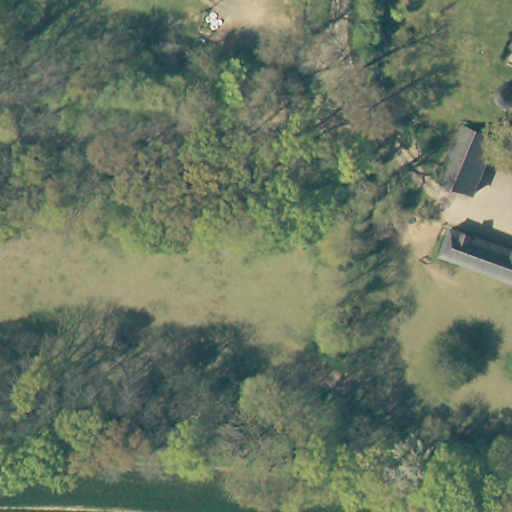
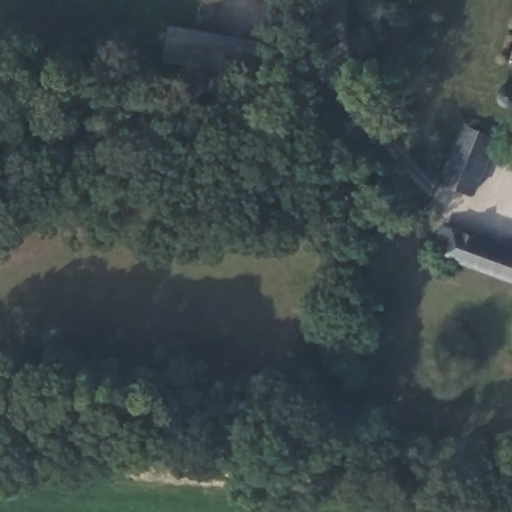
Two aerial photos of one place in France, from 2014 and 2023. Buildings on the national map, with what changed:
new [(265,43),(258,79),(164,59),(170,24),(265,43)]
unchanged [(504,85),(506,86),(508,87),(511,89),(512,92),(512,98),(511,101),(509,102),(507,104),(504,104),(502,104),(498,103),(496,101),(495,99),(494,97),(494,94),(494,92),(496,89),(497,87),(500,86),(503,85),(504,85)]
unchanged [(494,140),(472,197),(445,187),(444,181),(464,129),(494,140)]
unchanged [(141,186),(124,188),(123,180),(118,181),(115,179),(114,172),(116,170),(121,168),(121,162),(140,160),(141,186)]
unchanged [(512,249),(512,281),(428,251),(437,222),(512,249)]

